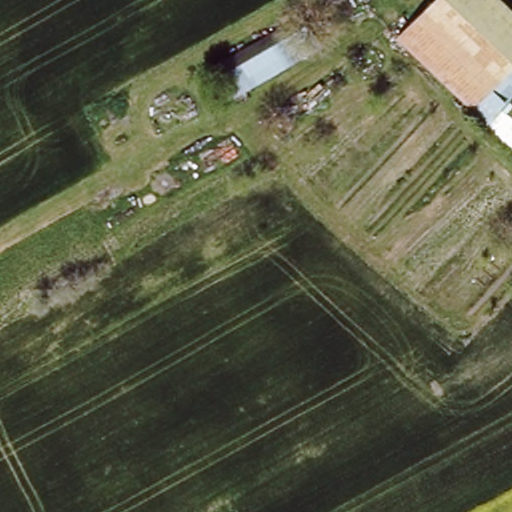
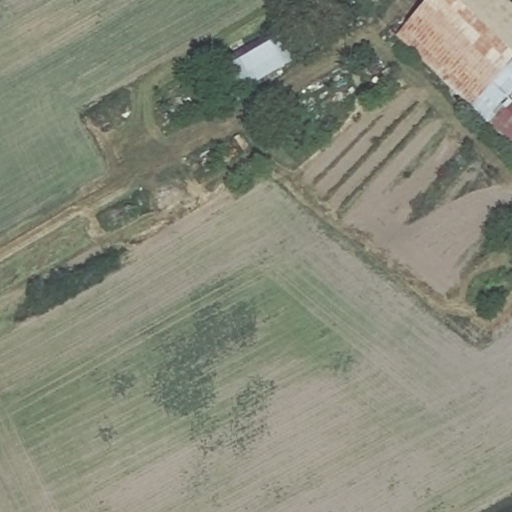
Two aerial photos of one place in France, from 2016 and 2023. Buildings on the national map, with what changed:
unchanged [(512,97),(509,101),(512,104),(512,146),(397,37),(432,0),(504,0),(512,7),(512,97)]
unchanged [(210,68),(304,16),(325,52),(232,106),(210,68)]

